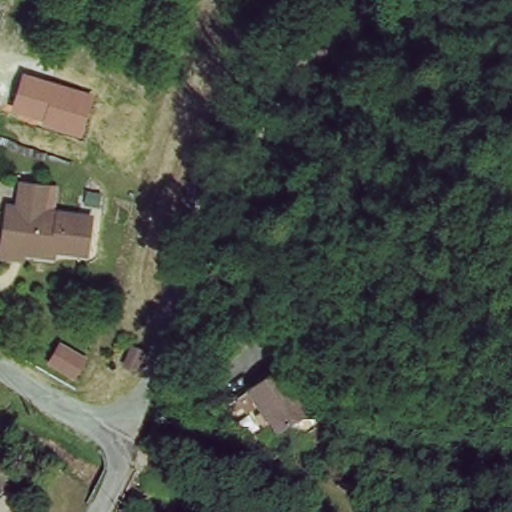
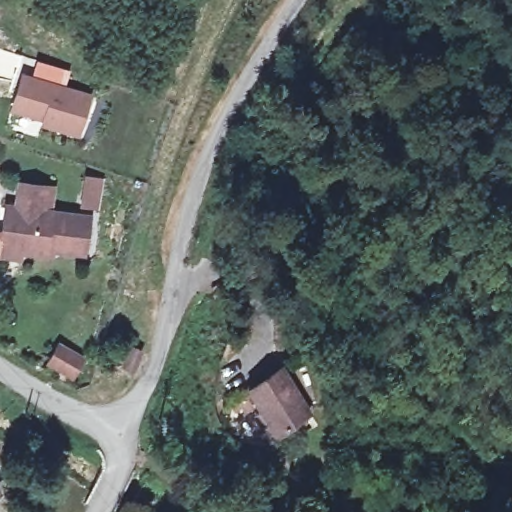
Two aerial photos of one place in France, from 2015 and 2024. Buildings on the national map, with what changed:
unchanged [(93,94),(79,135),(41,124),(41,119),(10,109),(22,70),(93,94)]
unchanged [(4,254),(6,236),(12,205),(21,206),(26,182),(51,186),(46,210),(94,217),(88,253),(55,248),(54,255),(23,250),(22,256),(4,254)]
unchanged [(136,355),(133,353),(129,363),(122,360),(129,343),(139,347),(136,355)]
unchanged [(253,415),(259,411),(245,387),(280,366),(308,411),(274,432),(269,435),(253,415)]

